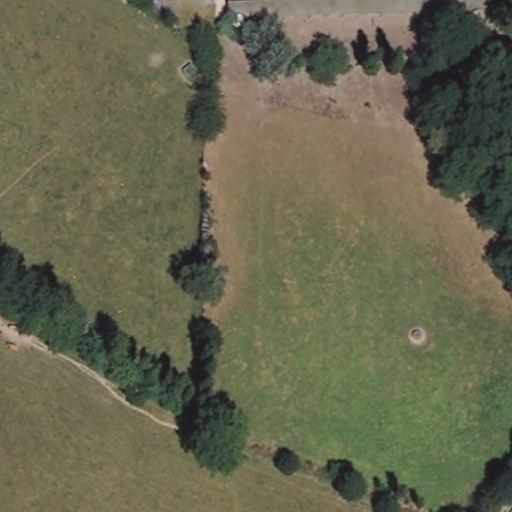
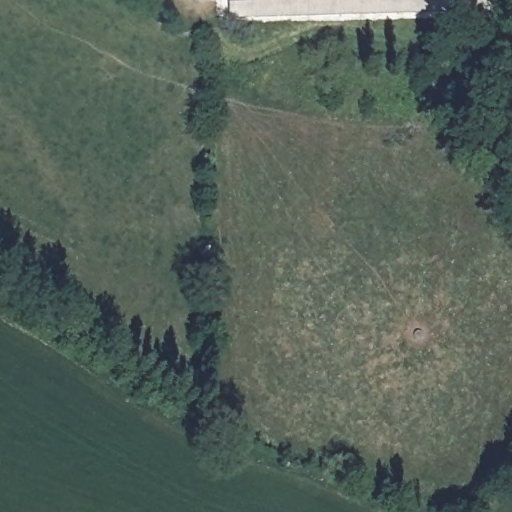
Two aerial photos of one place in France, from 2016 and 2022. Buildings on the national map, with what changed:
unchanged [(230,4),(254,4),(254,0),(495,0),(495,11),(230,17),(230,4)]
unchanged [(80,321),(90,324),(85,334),(76,331),(80,321)]

